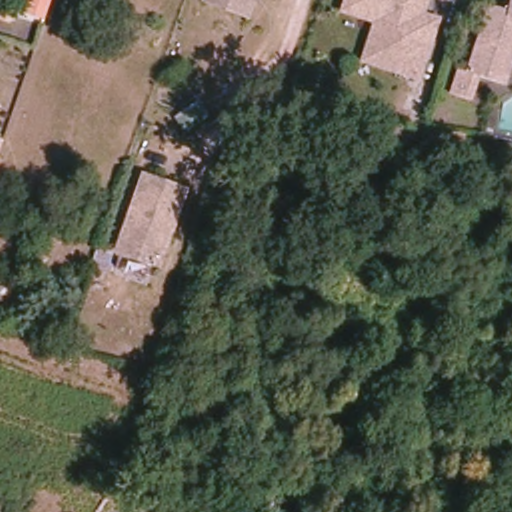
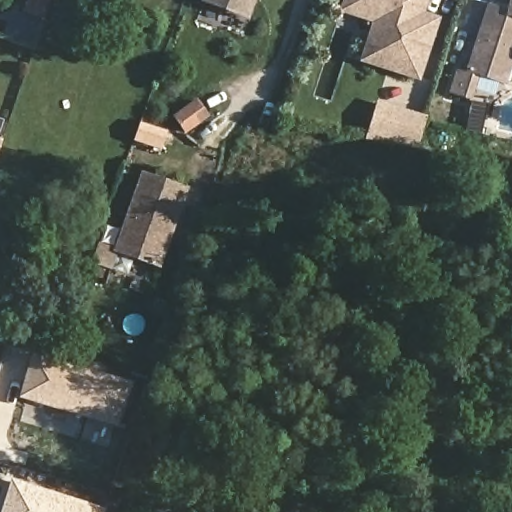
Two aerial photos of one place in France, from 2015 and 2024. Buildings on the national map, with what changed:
unchanged [(30,0),(51,0),(44,20),(24,12),(30,0)]
unchanged [(206,0),(251,0),(245,15),(240,14),(206,0)]
unchanged [(420,79),(379,65),(364,60),(378,21),(344,10),(346,5),(348,0),(429,0),(423,19),(430,21),(434,29),(430,41),(426,52),(429,54),(420,79)]
unchanged [(511,0),(512,0),(512,13),(508,11),(511,0)]
unchanged [(460,70),(465,72),(487,5),(508,11),(512,13),(512,69),(507,84),(480,76),(474,103),(452,96),(460,70)]
unchanged [(202,92),(192,100),(191,101),(185,94),(196,85),(202,92)]
new [(365,137),(376,100),(427,115),(417,152),(365,137)]
unchanged [(0,157),(0,139),(4,140),(0,157)]
unchanged [(163,262),(119,254),(136,178),(181,185),(163,262)]
new [(26,396),(36,357),(131,384),(119,423),(26,396)]
new [(104,512),(0,512),(10,478),(105,508),(104,512)]

